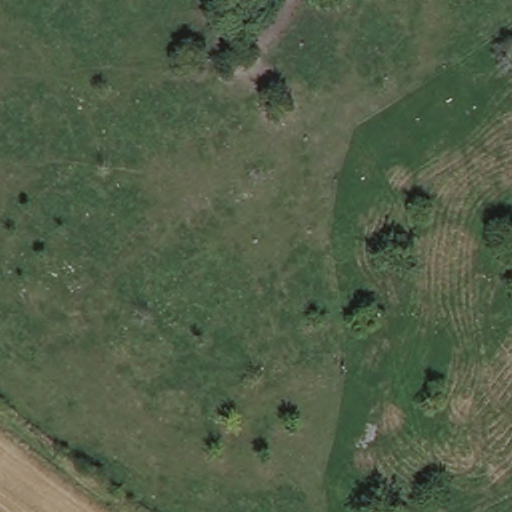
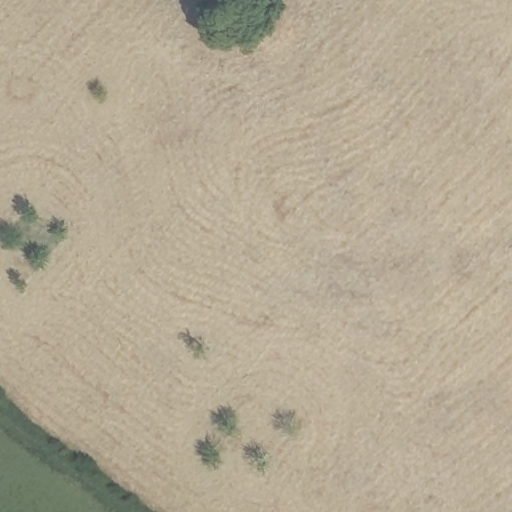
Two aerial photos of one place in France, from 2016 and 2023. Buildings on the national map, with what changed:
[]

